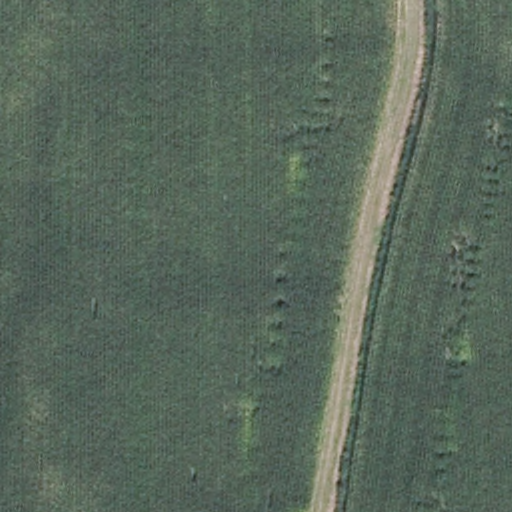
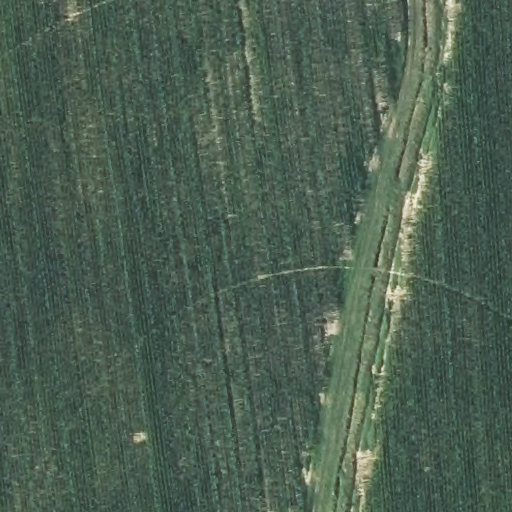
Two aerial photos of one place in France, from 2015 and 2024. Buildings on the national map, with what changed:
[]

